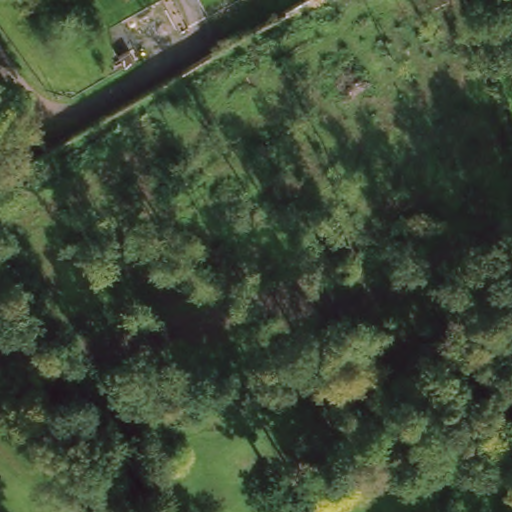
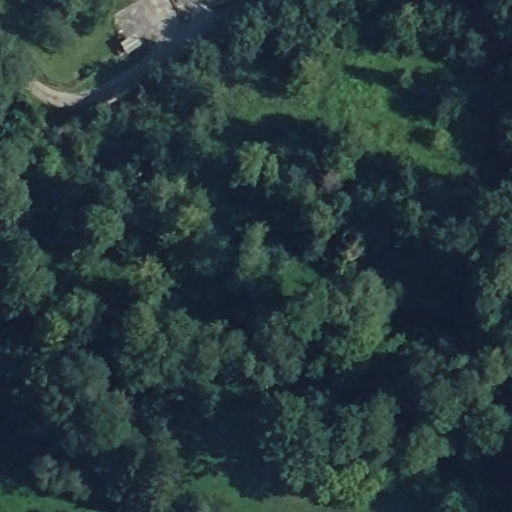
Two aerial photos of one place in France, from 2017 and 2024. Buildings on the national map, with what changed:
unchanged [(349,250),(351,251),(352,252),(355,255),(355,257),(356,260),(356,262),(356,265),(355,267),(353,270),(351,271),(350,272),(347,273),(345,274),(343,274),(340,273),(337,272),(335,271),(334,269),(332,267),(331,265),(331,261),(331,259),(332,256),(333,255),(349,250)]

